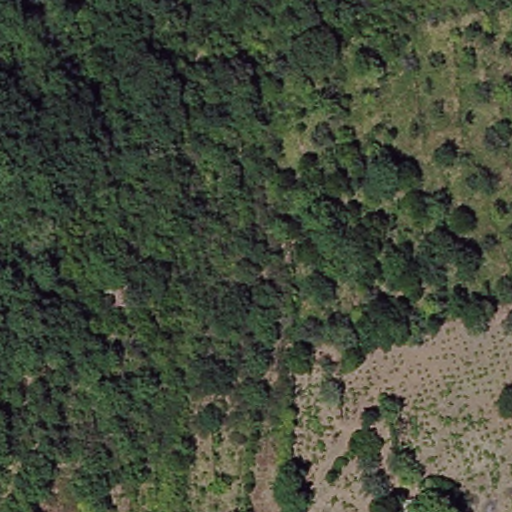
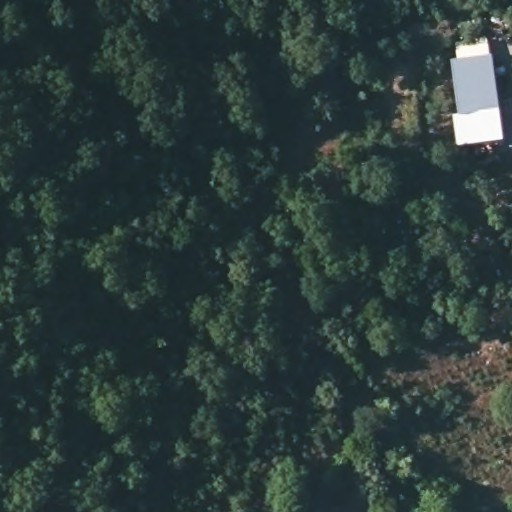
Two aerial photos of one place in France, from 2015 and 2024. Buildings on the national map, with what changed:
new [(492,55),(502,135),(463,140),(453,60),(492,55)]
unchanged [(141,248),(144,260),(128,261),(127,249),(141,248)]

